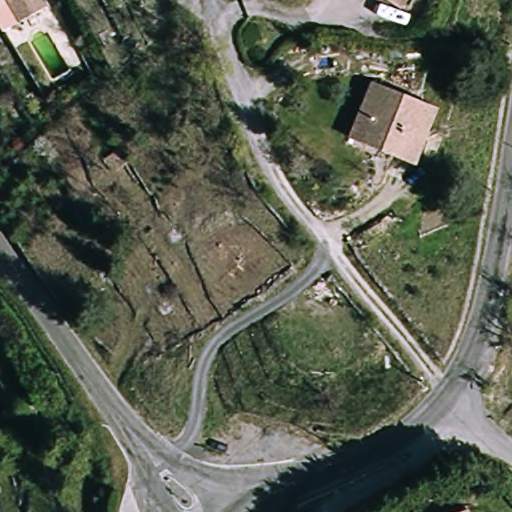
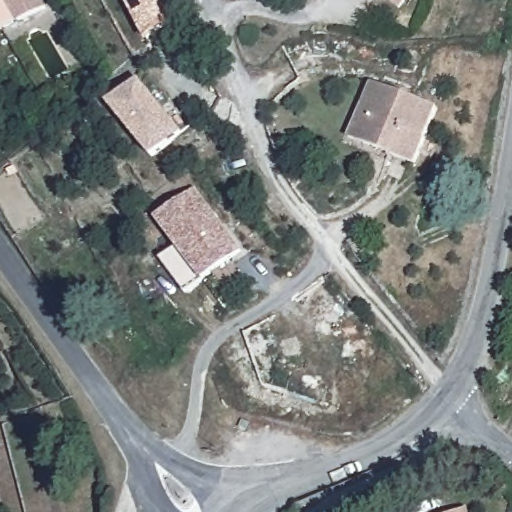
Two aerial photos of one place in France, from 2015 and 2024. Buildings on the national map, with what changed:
unchanged [(47,9),(5,34),(0,25),(0,0),(42,0),(47,9)]
unchanged [(396,9),(383,0),(402,0),(396,9)]
new [(153,160),(108,105),(138,80),(182,134),(153,160)]
unchanged [(419,166),(352,141),(373,85),(439,110),(419,166)]
new [(203,281),(156,220),(197,189),(243,251),(203,281)]
unchanged [(463,512),(473,508),(474,512),(463,512)]

